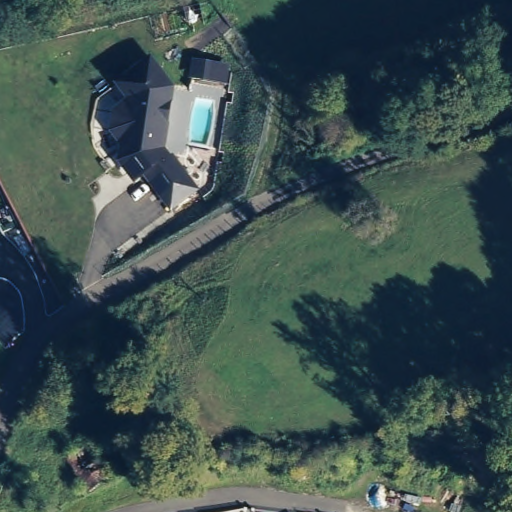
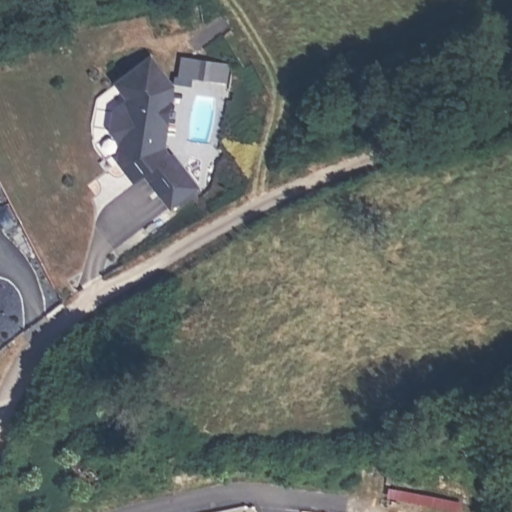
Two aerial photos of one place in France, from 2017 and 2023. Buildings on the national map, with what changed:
unchanged [(132,169),(125,158),(127,145),(128,144),(117,127),(120,108),(135,96),(122,80),(155,55),(176,84),(167,146),(175,156),(177,154),(202,186),(175,206),(148,170),(146,172),(139,177),(132,169)]
unchanged [(90,441),(117,478),(90,495),(67,457),(90,441)]

